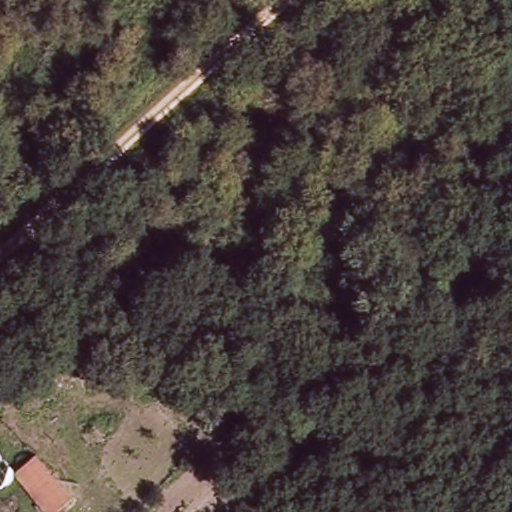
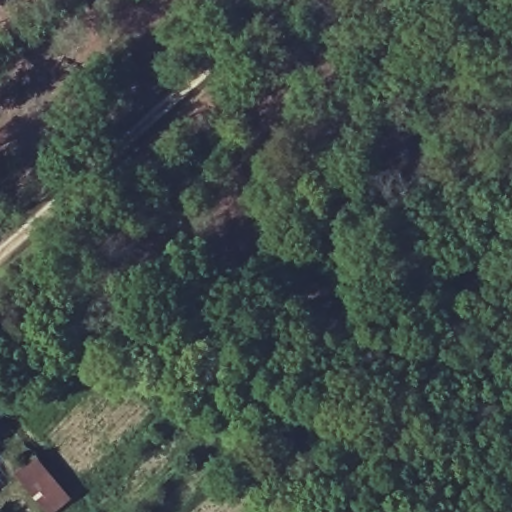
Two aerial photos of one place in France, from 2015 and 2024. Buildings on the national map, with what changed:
unchanged [(0,482),(0,455),(13,470),(0,482)]
unchanged [(60,512),(48,512),(17,476),(38,457),(73,499),(60,512)]

